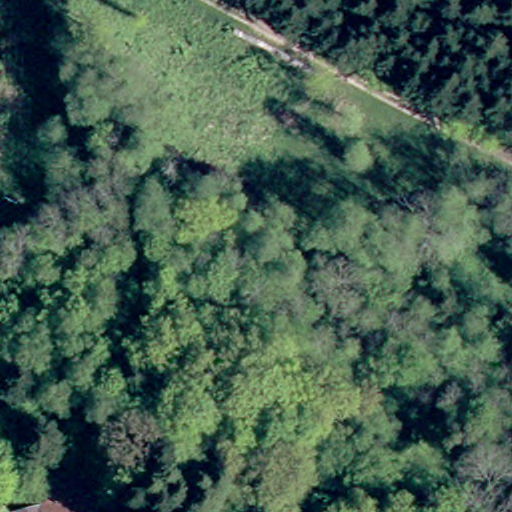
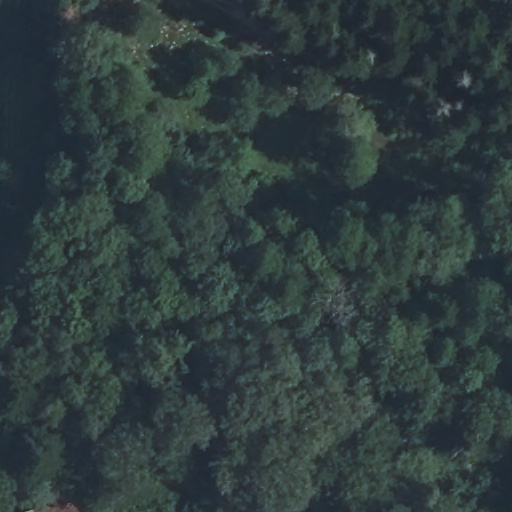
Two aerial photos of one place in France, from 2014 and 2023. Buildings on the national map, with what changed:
unchanged [(82,492),(100,489),(104,512),(58,512),(55,497),(82,492)]

